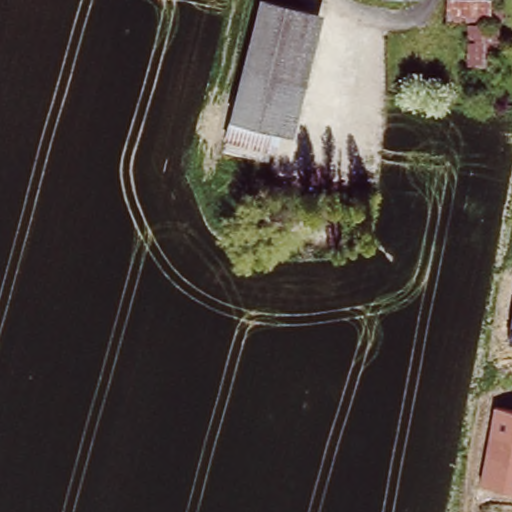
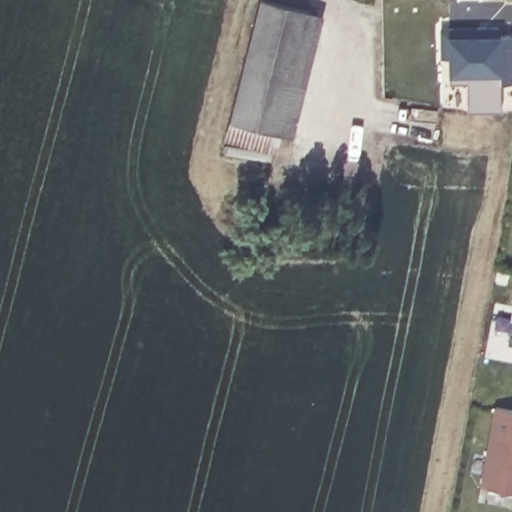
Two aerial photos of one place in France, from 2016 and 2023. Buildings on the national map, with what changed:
unchanged [(222,139),(258,0),(275,0),(307,10),(275,131),(270,151),(222,139)]
unchanged [(307,10),(319,12),(287,134),(275,131),(307,10)]
demolished [(500,22),(499,60),(469,58),(470,20),(500,22)]
new [(501,34),(512,34),(512,81),(500,82),(500,111),(465,111),(465,82),(445,82),(444,57),(440,57),(440,27),(502,25),(501,34)]
unchanged [(512,341),(509,341),(512,323),(512,341)]
unchanged [(512,411),(512,490),(479,482),(492,407),(512,411)]

